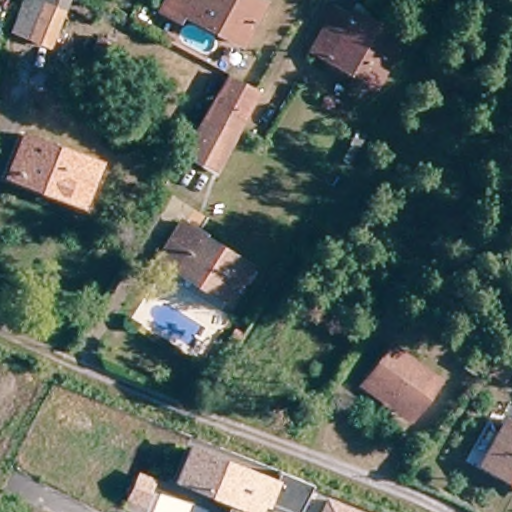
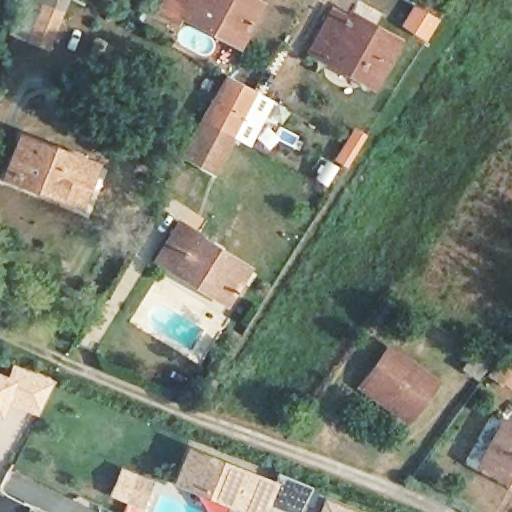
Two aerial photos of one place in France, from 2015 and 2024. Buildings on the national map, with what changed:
unchanged [(18,0),(43,0),(27,40),(9,32),(18,0)]
unchanged [(43,0),(66,0),(47,48),(27,40),(43,0)]
unchanged [(180,15),(176,21),(160,12),(167,0),(253,0),(260,4),(257,7),(238,46),(180,15)]
unchanged [(324,58),(311,51),(334,11),(348,20),(350,16),(397,42),(377,79),(373,86),(324,58)]
unchanged [(254,90),(256,91),(232,136),(201,120),(227,76),(254,90)]
unchanged [(201,120),(232,136),(212,171),(182,155),(201,120)]
unchanged [(90,164),(74,203),(36,189),(37,185),(4,172),(19,137),(90,164)]
unchanged [(249,268),(226,303),(172,269),(156,260),(163,249),(178,225),(249,268)]
unchanged [(395,317),(381,336),(365,324),(379,306),(395,317)]
unchanged [(351,390),(356,383),(378,353),(427,387),(405,417),(399,425),(351,390)]
unchanged [(451,373),(464,356),(481,367),(467,385),(451,373)]
new [(10,377),(16,366),(53,385),(39,412),(3,393),(0,400),(0,371),(10,377)]
unchanged [(499,422),(512,429),(512,484),(492,472),(475,462),(499,422)]
unchanged [(281,472),(312,484),(300,512),(298,512),(270,503),(268,507),(264,507),(261,512),(224,512),(227,505),(171,482),(186,444),(278,480),(281,472)]
unchanged [(363,512),(318,512),(324,497),(363,512)]

